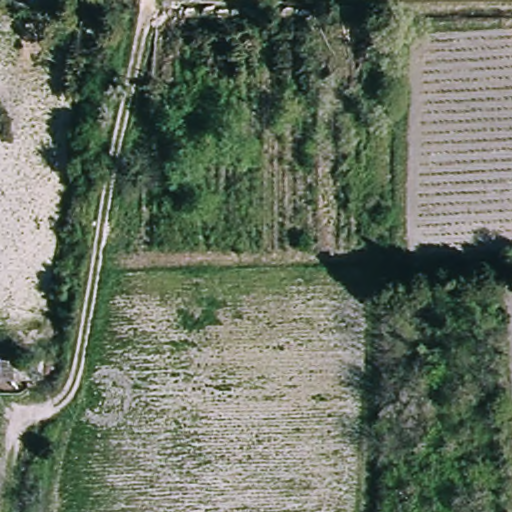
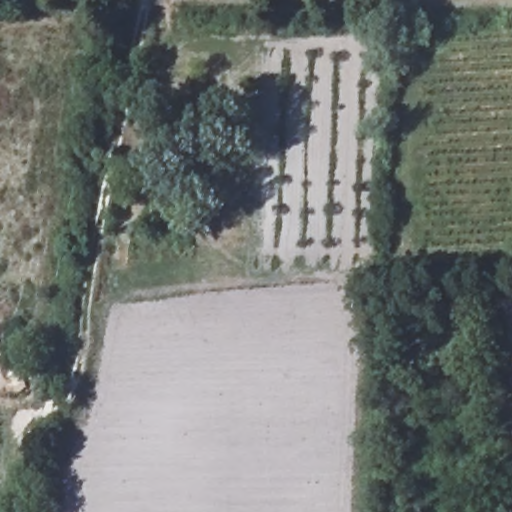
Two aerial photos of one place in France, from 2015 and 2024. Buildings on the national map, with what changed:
unchanged [(42,360),(42,380),(13,382),(12,360),(42,360)]

